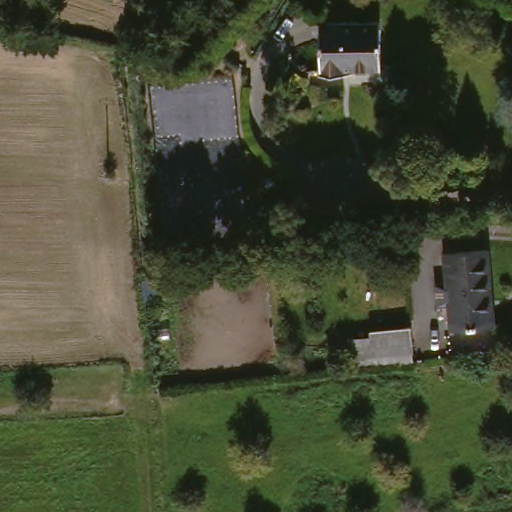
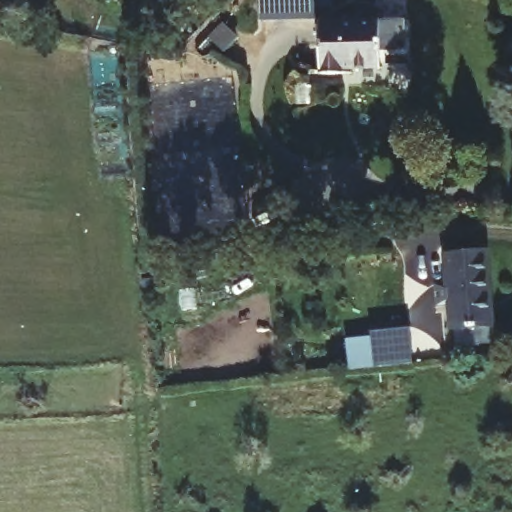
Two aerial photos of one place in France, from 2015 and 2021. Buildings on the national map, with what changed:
new [(260,21),(259,0),(315,0),(316,20),(260,21)]
unchanged [(331,74),(331,23),(391,24),(391,69),(355,69),(355,74),(331,74)]
unchanged [(492,329),(458,330),(457,308),(446,308),(445,285),(457,284),(457,255),(497,253),(498,299),(499,329),(492,329)]
unchanged [(358,368),(357,352),(384,348),(382,334),(421,329),(425,359),(358,368)]

